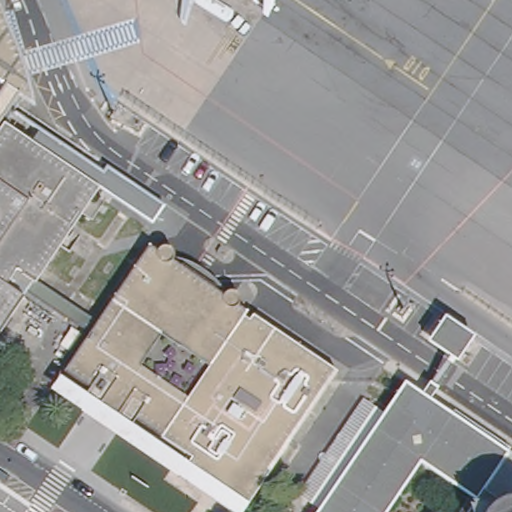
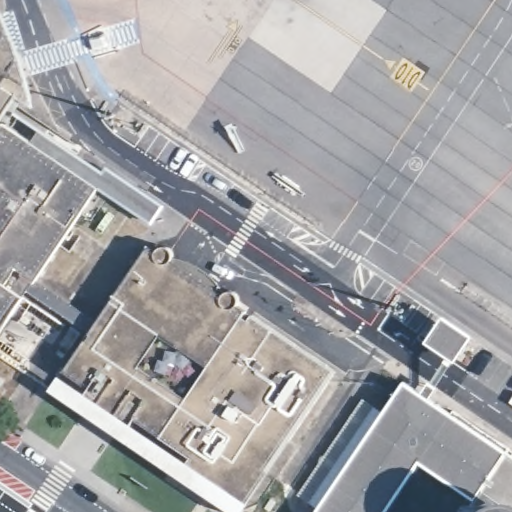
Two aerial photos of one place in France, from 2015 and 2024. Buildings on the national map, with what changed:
unchanged [(10,37),(17,60),(23,83),(27,107),(0,89),(0,15),(10,37)]
unchanged [(335,375),(307,416),(288,443),(282,440),(235,510),(191,480),(199,468),(160,442),(154,438),(157,435),(132,418),(127,426),(114,417),(119,410),(102,398),(97,406),(84,397),(89,390),(65,372),(88,338),(27,297),(0,336),(0,126),(10,133),(97,191),(33,288),(97,325),(148,250),(236,308),(335,375)]
unchanged [(390,512),(313,512),(405,377),(454,420),(428,456),(390,512)]
unchanged [(512,459),(512,492),(508,492),(497,497),(428,456),(454,420),(512,459)]
unchanged [(512,492),(512,512),(483,512),(487,506),(497,497),(508,492),(512,492)]

